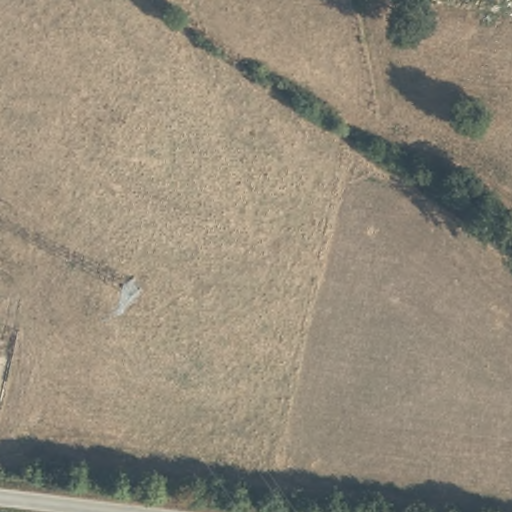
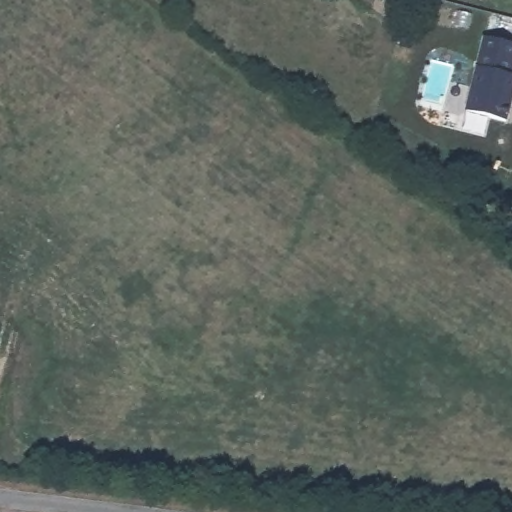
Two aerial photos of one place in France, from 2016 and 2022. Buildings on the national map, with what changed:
new [(477,68),(484,37),(512,44),(512,101),(507,121),(466,110),(477,68)]

